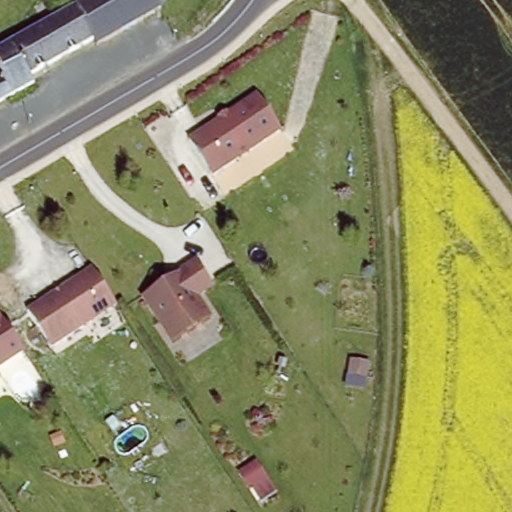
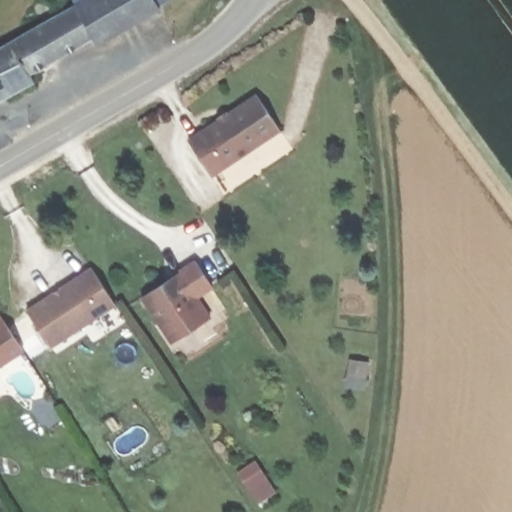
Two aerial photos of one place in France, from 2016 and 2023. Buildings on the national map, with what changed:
unchanged [(78,47),(39,71),(42,76),(0,101),(0,74),(5,71),(0,63),(0,52),(37,31),(31,22),(67,0),(73,0),(77,8),(82,6),(79,0),(160,0),(165,9),(87,55),(78,47)]
unchanged [(256,101),(277,136),(206,179),(185,143),(256,101)]
unchanged [(190,262),(205,287),(189,297),(201,319),(162,342),(134,296),(190,262)]
unchanged [(107,307),(40,348),(18,312),(85,272),(107,307)]
unchanged [(18,351),(0,363),(0,321),(18,351)]

